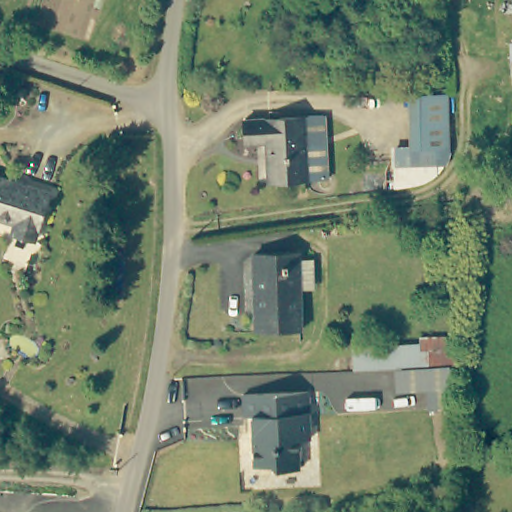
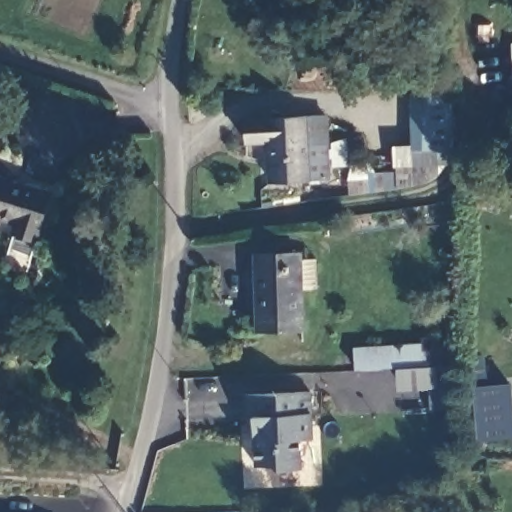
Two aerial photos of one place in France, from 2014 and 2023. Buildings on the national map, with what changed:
unchanged [(441,103),(447,154),(407,153),(407,102),(441,103)]
unchanged [(329,125),(330,181),(307,183),(307,126),(329,125)]
unchanged [(244,154),(242,130),(307,126),(307,183),(272,186),(268,151),(244,154)]
unchanged [(6,233),(9,225),(12,217),(0,213),(0,175),(50,194),(34,235),(31,243),(6,233)]
unchanged [(251,258),(298,258),(298,263),(312,263),(313,293),(298,293),(299,335),(252,337),(251,258)]
unchanged [(417,348),(417,340),(455,338),(460,370),(352,374),(350,351),(417,348)]
unchanged [(456,370),(460,370),(460,390),(397,394),(396,372),(456,370)]
new [(512,441),(476,444),(472,389),(511,385),(512,406),(512,441)]
unchanged [(310,435),(297,436),(298,466),(276,466),(272,461),(254,462),(253,434),(244,434),(242,390),(308,388),(310,435)]

